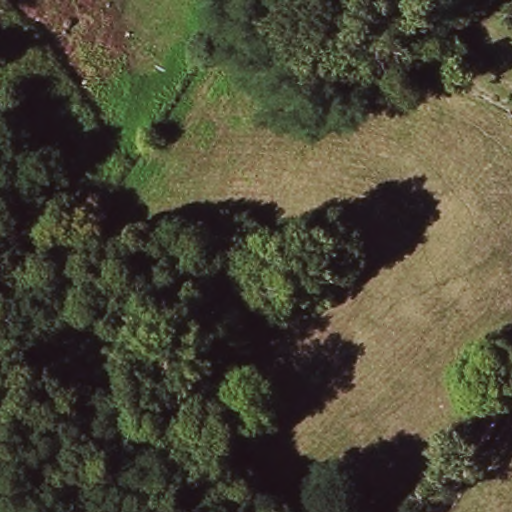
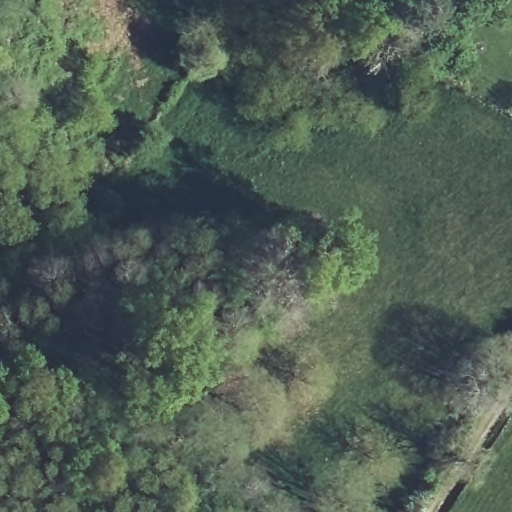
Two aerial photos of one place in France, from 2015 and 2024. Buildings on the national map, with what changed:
[]

